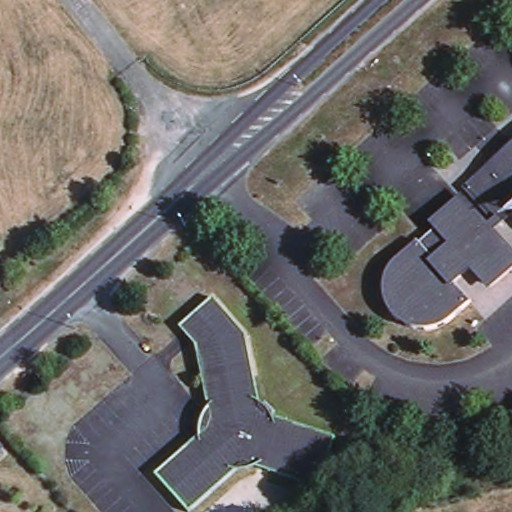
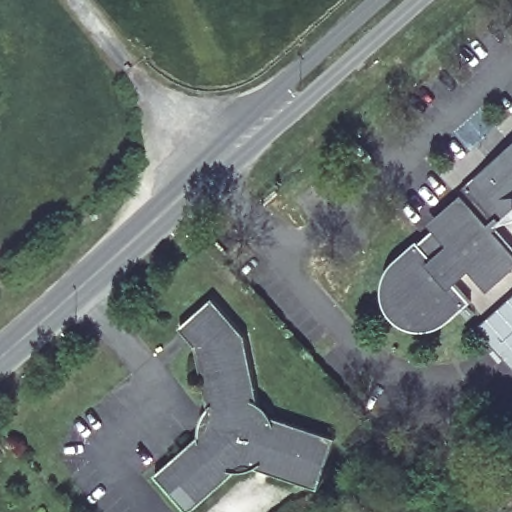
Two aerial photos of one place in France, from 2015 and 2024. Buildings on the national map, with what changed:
unchanged [(480,183),(489,175),(512,154),(512,213),(510,215),(480,183)]
unchanged [(512,242),(512,275),(501,284),(482,263),(464,279),(483,300),(467,315),(461,320),(446,325),(430,325),(415,318),(405,306),(399,290),(400,274),(406,260),(428,240),(430,243),(448,226),(446,224),(473,199),(512,242)]
unchanged [(272,403),(279,409),(348,430),(333,481),(261,459),(255,461),(204,509),(169,472),(220,424),(222,414),(206,343),(190,324),(222,294),(255,330),(272,403)]
new [(512,295),(512,366),(476,327),(512,295)]

